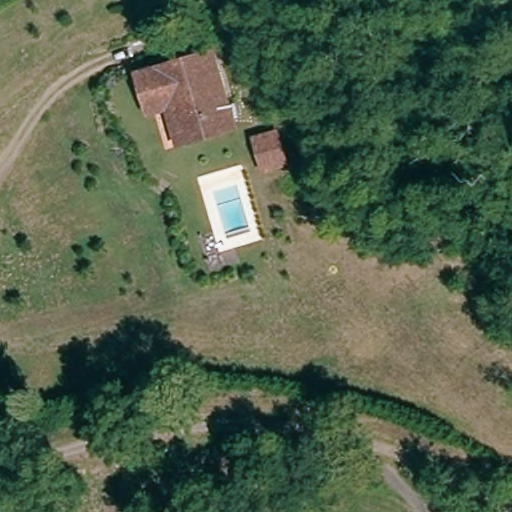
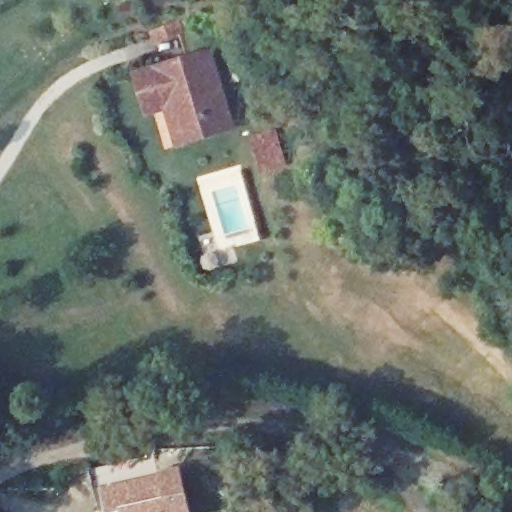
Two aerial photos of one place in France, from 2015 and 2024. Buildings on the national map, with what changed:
unchanged [(189,129),(181,107),(162,113),(149,70),(155,68),(216,49),(236,114),(240,124),(192,140),(189,129)]
unchanged [(278,170),(257,175),(250,148),(271,142),(278,170)]
demolished [(250,191),(230,196),(222,168),(243,163),(250,191)]
new [(101,488),(180,467),(191,512),(107,512),(101,488)]

